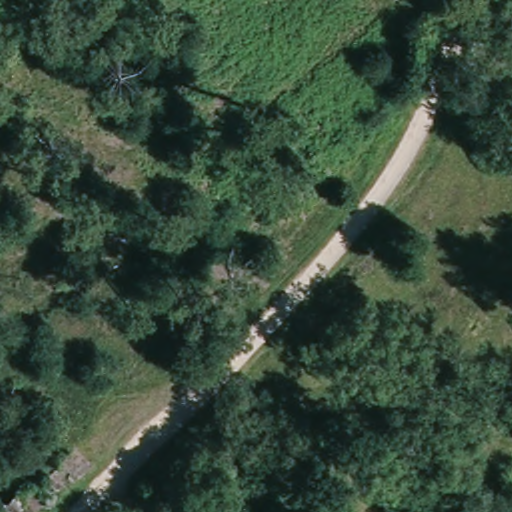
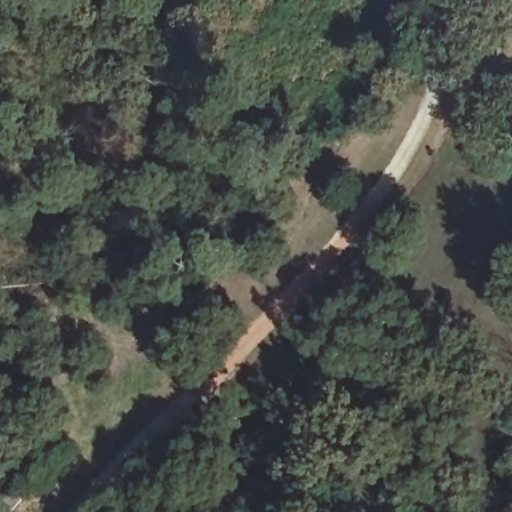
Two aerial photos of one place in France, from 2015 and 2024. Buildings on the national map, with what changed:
unchanged [(37,506),(32,512),(13,512),(27,497),(37,506)]

